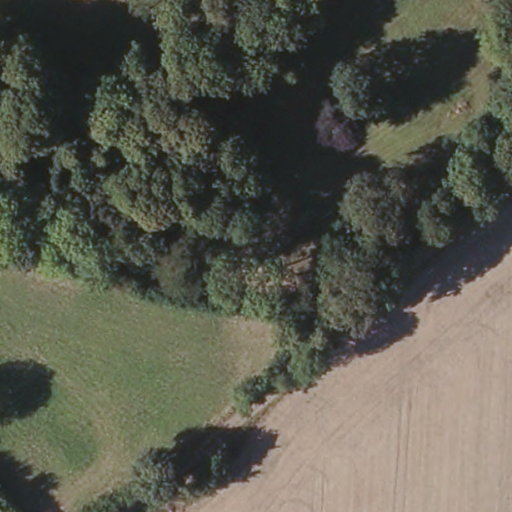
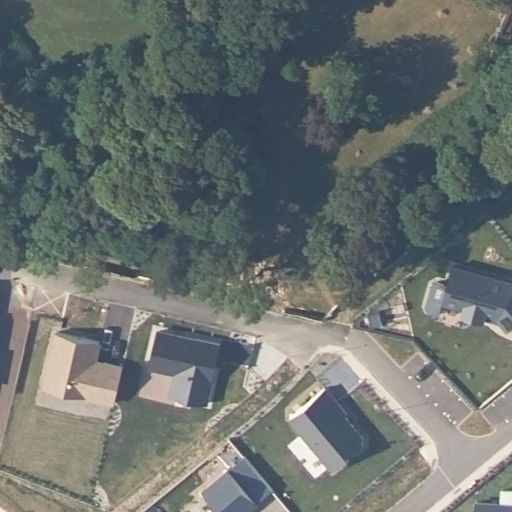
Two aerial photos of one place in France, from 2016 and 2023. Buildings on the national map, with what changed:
new [(507,329),(497,316),(484,313),(482,319),(461,314),(463,307),(440,300),(451,263),(512,280),(512,325),(507,329)]
new [(426,309),(424,305),(430,282),(435,279),(445,282),(437,313),(426,309)]
new [(194,339),(195,337),(222,344),(218,362),(212,360),(211,367),(217,368),(208,404),(171,396),(176,373),(149,367),(157,331),(194,339)]
new [(57,332),(100,342),(94,369),(102,371),(104,363),(123,367),(115,403),(44,387),(57,332)]
new [(96,361),(104,363),(102,371),(94,369),(96,361)]
new [(324,386),(346,412),(343,414),(363,438),(362,444),(331,469),(288,416),(324,386)]
new [(216,506),(203,491),(230,469),(245,456),(273,490),(258,503),(246,512),(208,512),(216,506)]
new [(476,504),(512,506),(512,512),(475,512),(476,504)]

